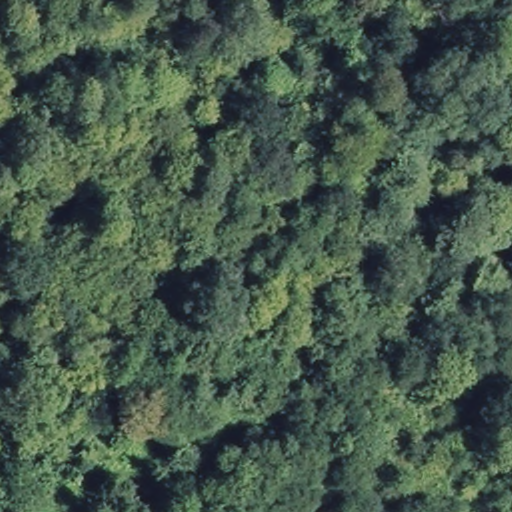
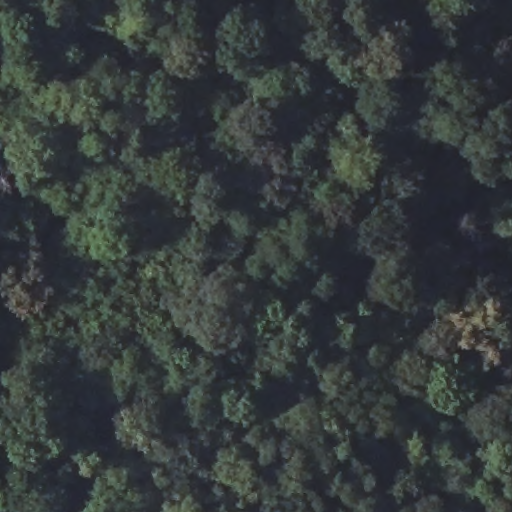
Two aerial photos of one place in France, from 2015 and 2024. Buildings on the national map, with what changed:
unchanged [(130,379),(139,408),(136,409),(86,428),(77,401),(70,404),(66,393),(127,373),(130,379)]

